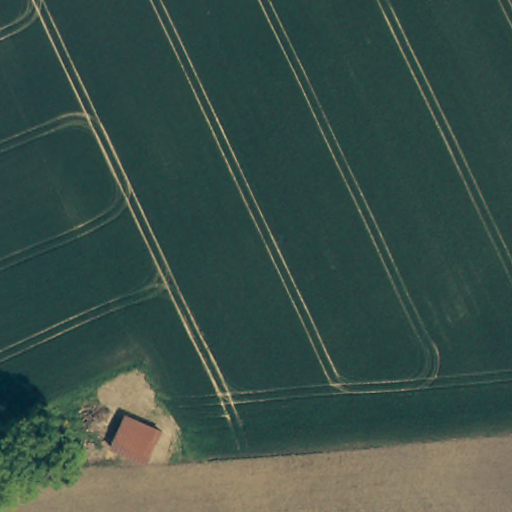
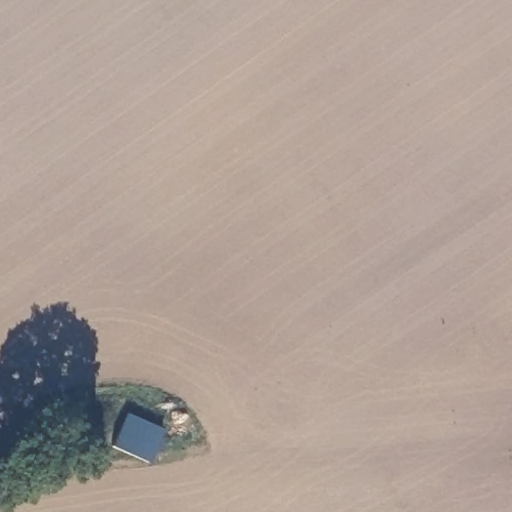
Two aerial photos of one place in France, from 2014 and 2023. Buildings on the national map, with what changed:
unchanged [(164,430),(147,460),(111,443),(127,412),(164,430)]

